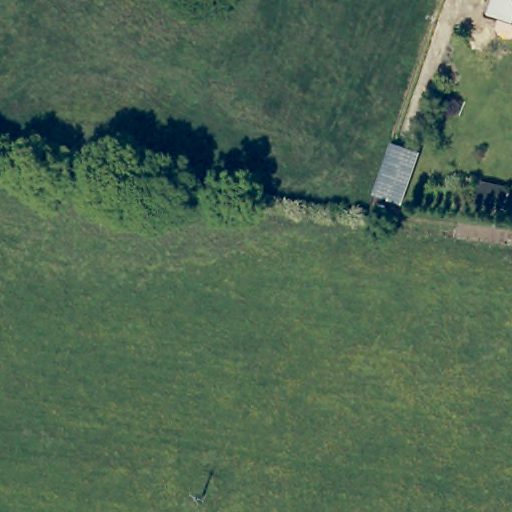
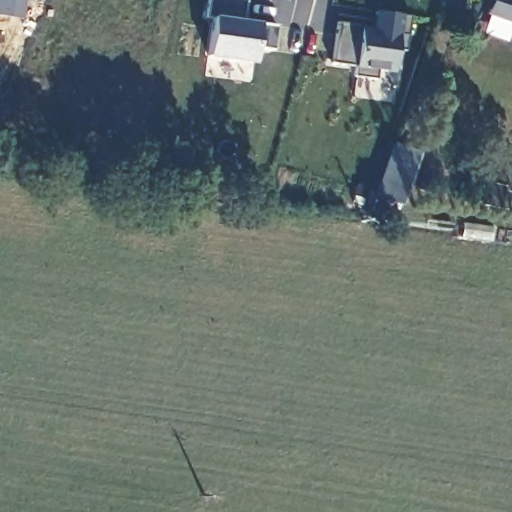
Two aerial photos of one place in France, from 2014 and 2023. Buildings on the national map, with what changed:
new [(244,23),(274,26),(271,50),(254,47),(253,62),(208,57),(214,16),(206,16),(208,0),(246,0),(244,23)]
new [(361,26),(371,27),(374,12),(405,17),(410,17),(406,51),(396,49),(394,73),(378,71),(377,79),(353,76),(356,66),(331,63),(337,23),(361,26)]
unchanged [(390,193),(404,152),(432,162),(414,214),(386,204),(390,193)]
unchanged [(512,199),(512,218),(488,213),(492,195),(512,199)]

